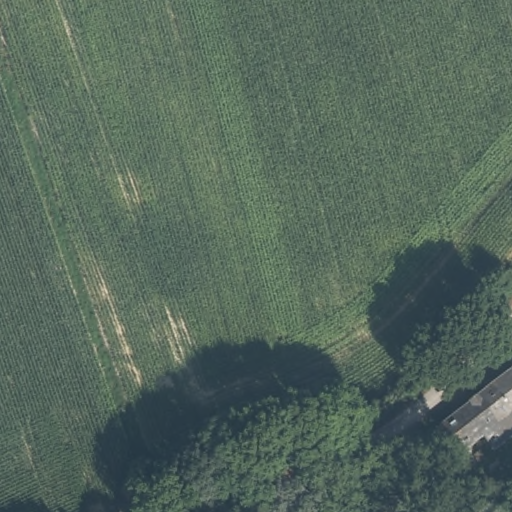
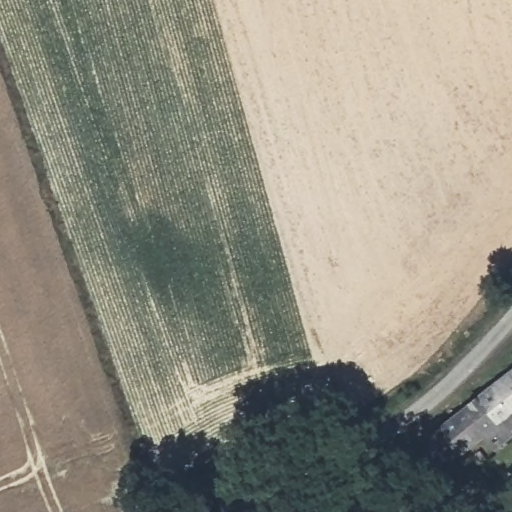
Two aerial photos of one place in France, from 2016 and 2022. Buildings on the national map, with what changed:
unchanged [(512,370),(512,417),(508,420),(512,427),(512,430),(476,458),(465,447),(443,463),(433,451),(414,466),(403,452),(512,370)]

